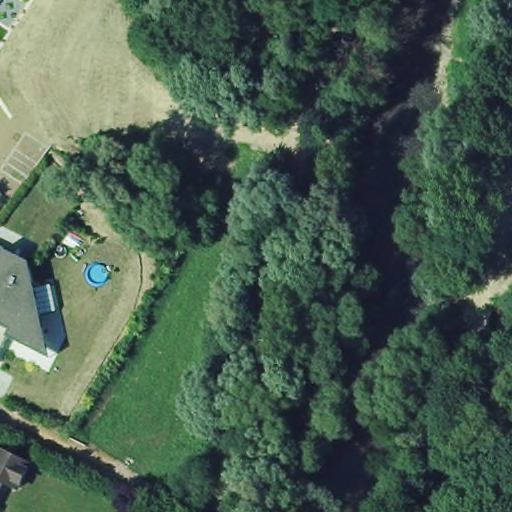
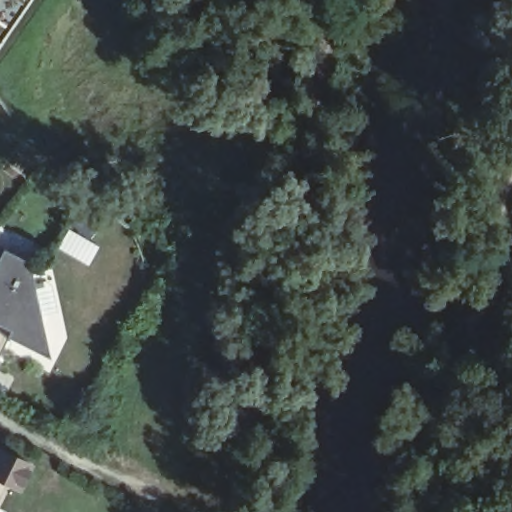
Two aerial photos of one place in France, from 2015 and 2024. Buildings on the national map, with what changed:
unchanged [(52,361),(9,339),(0,358),(0,246),(31,263),(52,361)]
unchanged [(29,490),(11,481),(0,504),(0,446),(40,466),(29,490)]

